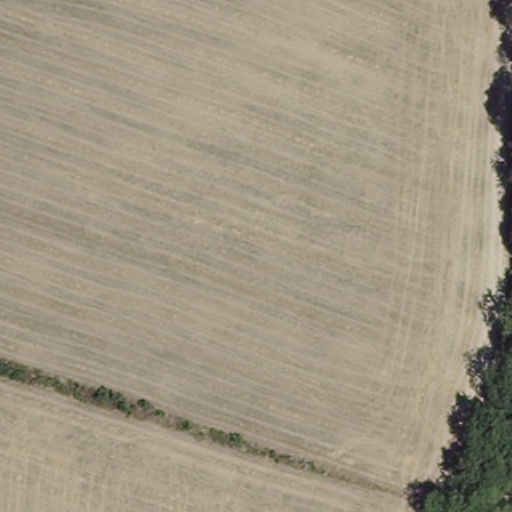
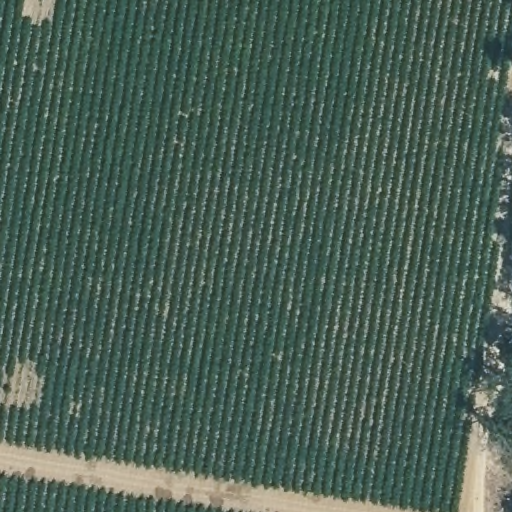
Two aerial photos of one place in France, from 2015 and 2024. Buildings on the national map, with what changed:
[]

